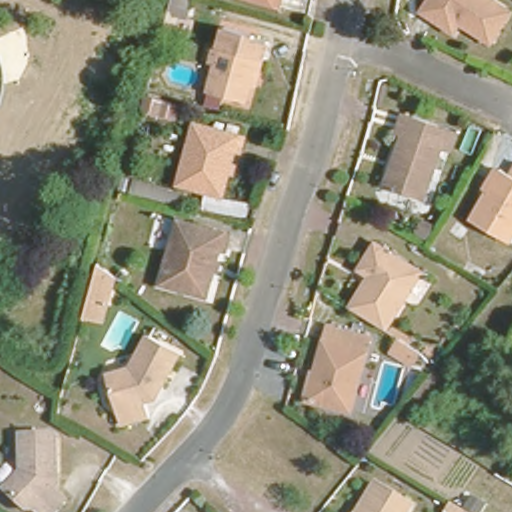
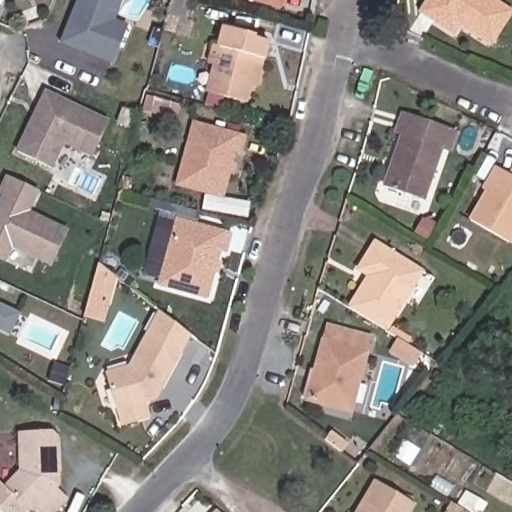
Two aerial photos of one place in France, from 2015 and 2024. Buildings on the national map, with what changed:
new [(77,0),(122,0),(114,19),(128,25),(112,63),(59,43),(77,0)]
unchanged [(163,24),(170,0),(184,0),(177,28),(163,24)]
unchanged [(281,1),(277,0),(281,0),(281,1)]
unchanged [(491,44),(469,29),(472,25),(462,18),(452,33),(420,11),(428,0),(494,0),(512,12),(491,44)]
unchanged [(245,106),(207,96),(214,67),(205,65),(210,47),(219,48),(223,30),(257,39),(256,42),(269,45),(265,61),(257,92),(250,90),(245,106)]
new [(107,120),(90,157),(63,145),(53,167),(16,150),(44,90),(107,120)]
unchanged [(439,142),(421,193),(380,177),(404,108),(420,113),(451,124),(448,135),(445,144),(439,142)]
unchanged [(231,148),(222,187),(176,176),(191,120),(243,132),(239,150),(231,148)]
unchanged [(492,169),(497,160),(508,166),(512,160),(512,185),(492,169)]
unchanged [(505,234),(467,211),(492,169),(512,185),(512,224),(505,234)]
new [(30,211),(69,230),(51,267),(10,247),(4,261),(0,260),(0,198),(1,194),(0,194),(0,186),(5,175),(39,191),(30,211)]
unchanged [(161,281),(178,218),(230,232),(226,248),(217,246),(205,294),(161,281)]
unchanged [(361,307),(350,301),(363,278),(368,281),(374,272),(358,262),(374,235),(420,263),(384,321),(361,307)]
unchanged [(81,320),(97,262),(118,277),(104,326),(81,320)]
new [(10,334),(0,330),(0,303),(20,313),(10,334)]
unchanged [(304,395),(323,323),(363,334),(345,406),(304,395)]
unchanged [(150,400),(157,416),(128,426),(110,378),(133,369),(147,335),(182,350),(168,387),(165,394),(156,398),(150,400)]
unchanged [(393,359),(400,346),(421,358),(413,371),(393,359)]
unchanged [(54,481),(64,491),(45,509),(34,498),(31,500),(7,475),(22,460),(19,426),(45,423),(54,431),(58,477),(54,481)]
unchanged [(411,510),(410,512),(362,512),(376,489),(411,510)]
unchanged [(468,512),(445,512),(451,502),(468,512)]

